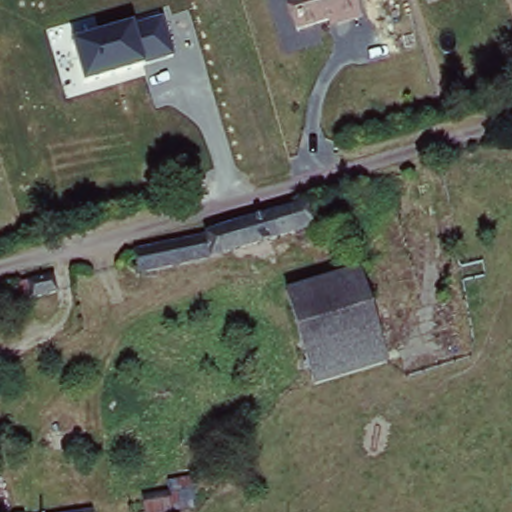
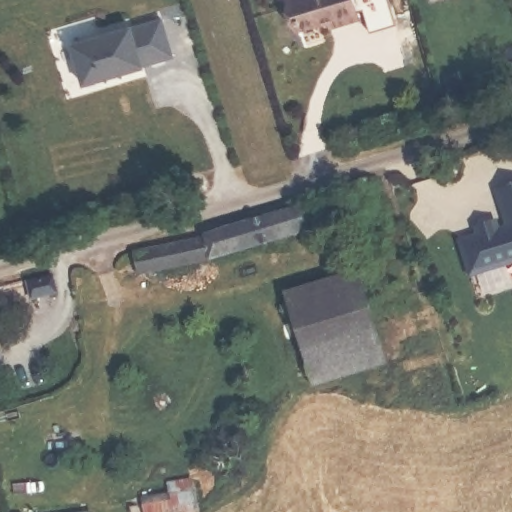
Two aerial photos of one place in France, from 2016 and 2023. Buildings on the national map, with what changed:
unchanged [(327,23),(295,33),(285,0),(396,0),(402,21),(366,34),(360,20),(330,30),(327,23)]
unchanged [(143,68),(82,86),(70,44),(131,26),(133,30),(161,21),(173,56),(143,68)]
new [(480,238),(476,227),(495,222),(498,231),(509,229),(498,191),(512,187),(512,261),(471,274),(461,242),(480,238)]
unchanged [(315,220),(222,256),(148,280),(139,252),(185,241),(269,203),(303,192),(315,220)]
unchanged [(305,348),(286,296),(357,270),(376,319),(305,348)]
unchanged [(63,290),(20,301),(15,286),(58,274),(63,290)]
unchanged [(391,358),(319,385),(305,348),(376,319),(391,358)]
unchanged [(139,495),(171,490),(169,479),(193,474),(199,507),(168,512),(142,512),(139,495)]
unchanged [(93,512),(71,512),(92,509),(93,512)]

